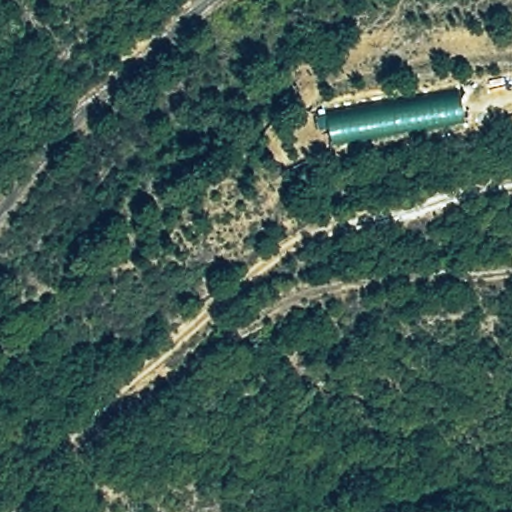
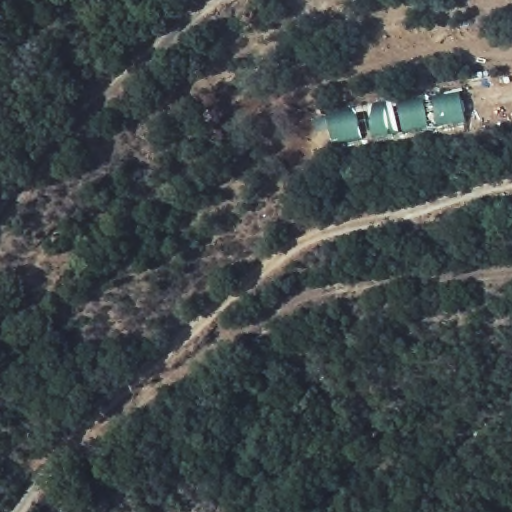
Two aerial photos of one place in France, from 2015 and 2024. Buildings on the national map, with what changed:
unchanged [(462,91),(468,122),(332,145),(327,114),(462,91)]

